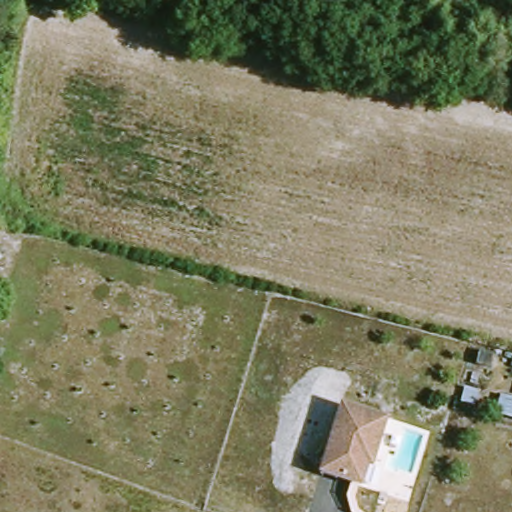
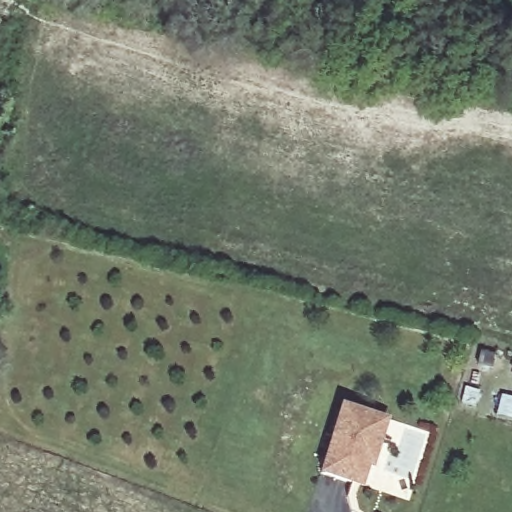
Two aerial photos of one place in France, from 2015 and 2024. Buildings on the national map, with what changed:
unchanged [(370,467),(365,486),(357,484),(325,473),(347,405),(392,421),(380,456),(375,468),(370,467)]

